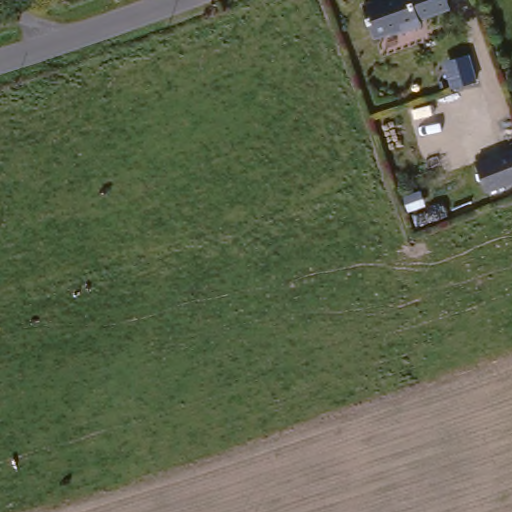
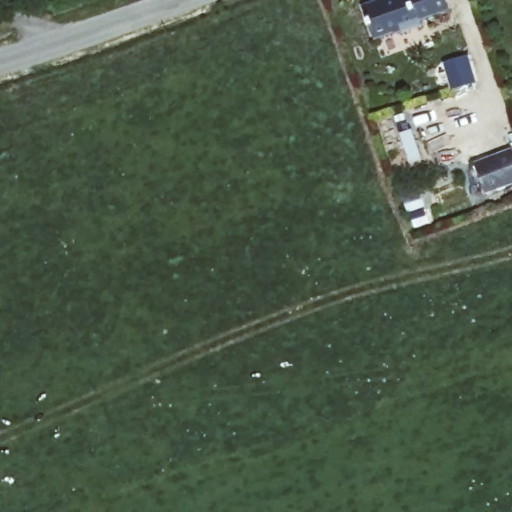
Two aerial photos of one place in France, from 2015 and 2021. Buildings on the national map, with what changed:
unchanged [(359,14),(392,0),(439,0),(444,13),(419,24),(420,27),(400,36),(399,32),(372,44),(359,14)]
unchanged [(510,151),(512,156),(512,181),(484,193),(473,165),(510,151)]

